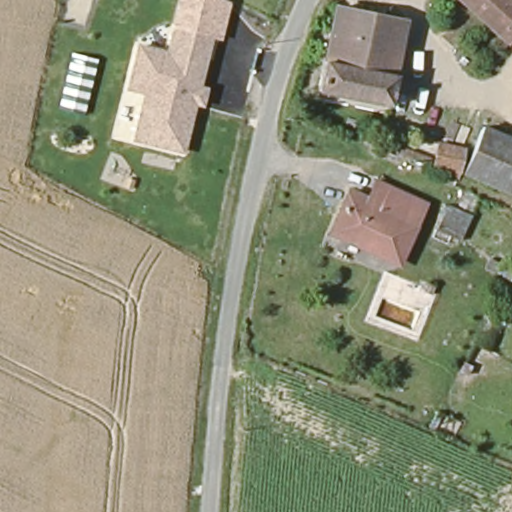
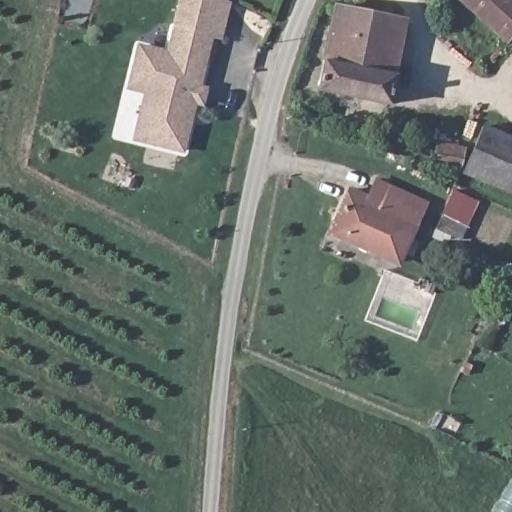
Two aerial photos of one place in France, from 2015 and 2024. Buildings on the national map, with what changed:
unchanged [(174,27),(180,0),(226,0),(232,2),(223,39),(214,36),(174,27)]
unchanged [(512,2),(512,36),(506,43),(458,0),(510,0),(512,2)]
unchanged [(388,102),(318,90),(333,7),(405,22),(388,102)]
unchanged [(174,27),(214,36),(202,86),(209,86),(204,110),(196,108),(183,155),(133,141),(143,95),(128,90),(138,46),(167,51),(174,27)]
unchanged [(512,133),(512,186),(471,168),(487,123),(512,133)]
unchanged [(438,151),(441,136),(465,144),(461,170),(453,170),(454,165),(389,145),(391,136),(438,151)]
unchanged [(350,192),(367,200),(375,182),(421,205),(394,266),(329,235),(350,192)]
unchanged [(454,239),(433,229),(438,216),(460,227),(454,239)]
new [(489,512),(512,471),(512,512),(489,512)]

